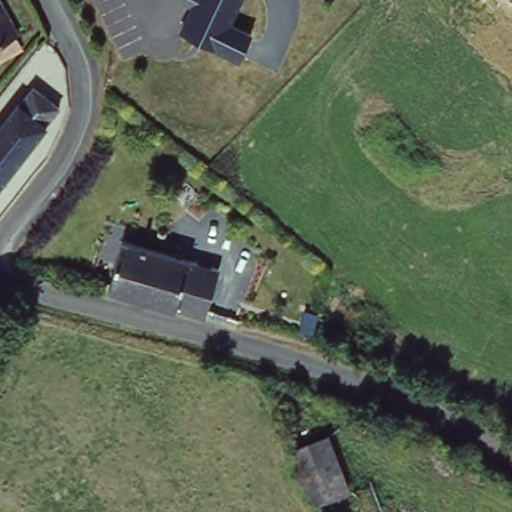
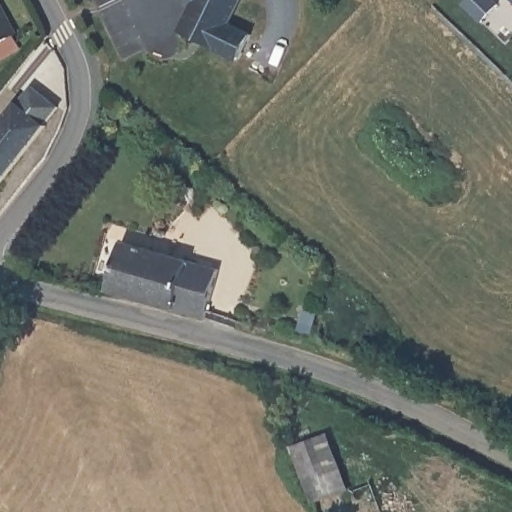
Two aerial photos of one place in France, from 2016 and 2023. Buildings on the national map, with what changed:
unchanged [(182,32),(193,0),(245,0),(235,25),(254,32),(243,58),(182,32)]
new [(498,2),(481,21),(460,1),(460,0),(496,0),(498,2)]
unchanged [(14,29),(0,35),(0,4),(14,29)]
unchanged [(39,117),(0,172),(0,108),(9,96),(39,117)]
unchanged [(120,242),(151,250),(220,266),(207,321),(107,294),(120,242)]
unchanged [(327,438),(350,493),(313,508),(292,454),(327,438)]

